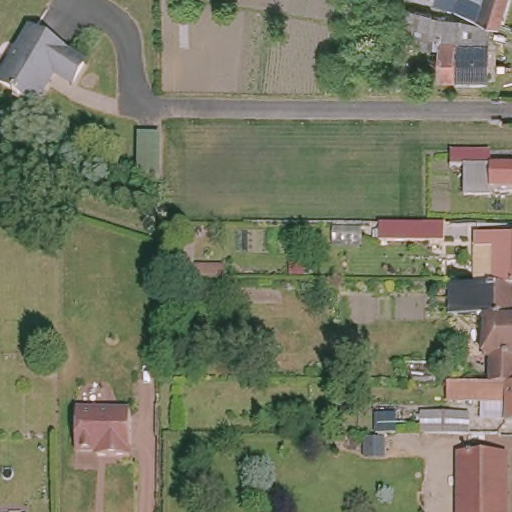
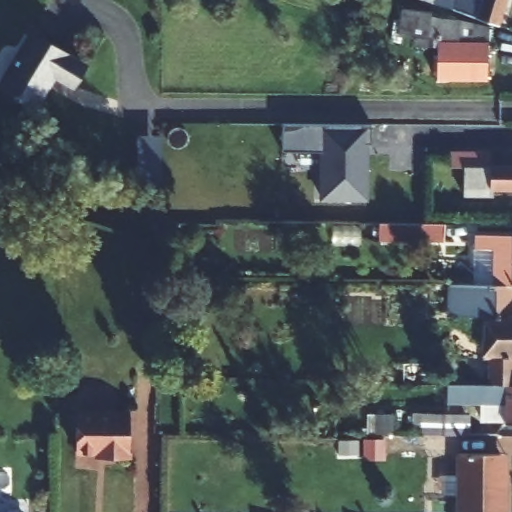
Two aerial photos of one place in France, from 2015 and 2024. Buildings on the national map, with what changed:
unchanged [(495,0),(488,23),(418,0),(495,0)]
unchanged [(403,44),(404,37),(387,36),(389,6),(418,9),(417,37),(409,37),(408,43),(403,44)]
unchanged [(446,17),(477,25),(477,77),(425,77),(426,16),(446,17)]
unchanged [(83,59),(71,79),(53,67),(35,99),(22,91),(20,94),(13,89),(13,86),(1,77),(31,27),(83,59)]
new [(367,202),(321,200),(321,150),(283,149),(283,122),(370,124),(367,202)]
unchanged [(138,134),(161,135),(161,195),(135,194),(138,134)]
unchanged [(488,155),(489,169),(512,169),(512,189),(450,189),(450,154),(488,155)]
unchanged [(377,238),(377,221),(442,222),(442,239),(377,238)]
unchanged [(503,424),(503,397),(462,396),(463,385),(467,385),(490,385),(490,358),(485,358),(485,311),(485,295),(463,295),(462,283),(474,283),(498,283),(498,246),(475,247),(475,232),(512,232),(512,284),(509,283),(509,296),(510,312),(512,312),(512,359),(510,359),(510,386),(512,386),(512,424),(503,424)]
unchanged [(133,411),(132,457),(101,457),(101,452),(80,451),(81,410),(133,411)]
unchanged [(444,435),(423,435),(423,417),(467,417),(469,417),(469,435),(467,435),(444,435)]
unchanged [(464,450),(505,451),(505,493),(510,495),(510,512),(464,512),(464,450)]

